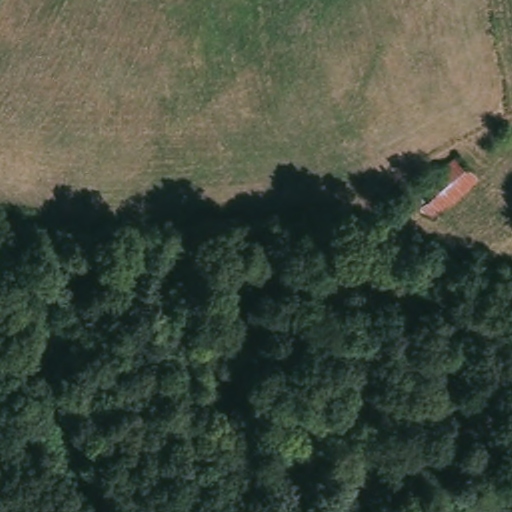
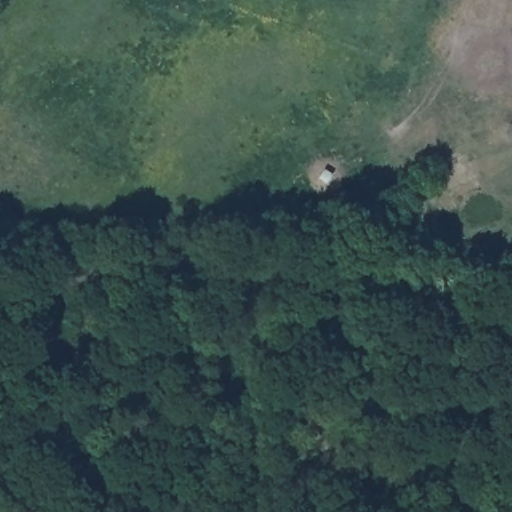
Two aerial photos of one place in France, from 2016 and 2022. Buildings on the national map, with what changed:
unchanged [(429,225),(406,200),(455,155),(478,184),(429,225)]

